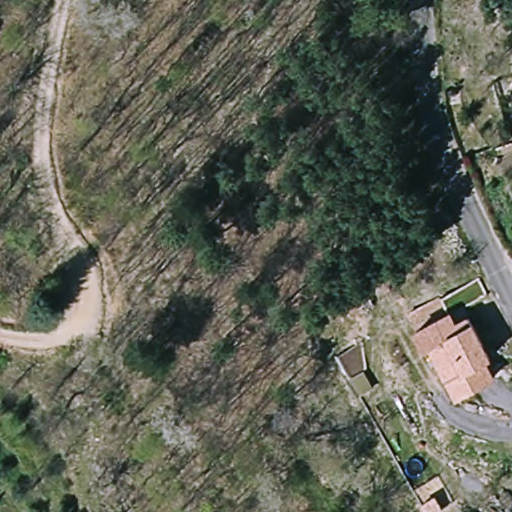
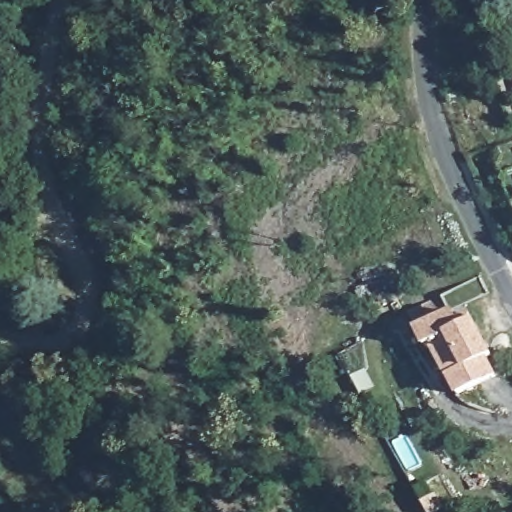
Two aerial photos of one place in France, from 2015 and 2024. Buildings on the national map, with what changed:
unchanged [(447,313),(455,323),(467,316),(492,352),(486,356),(498,372),(463,395),(431,346),(427,350),(415,333),(447,313)]

